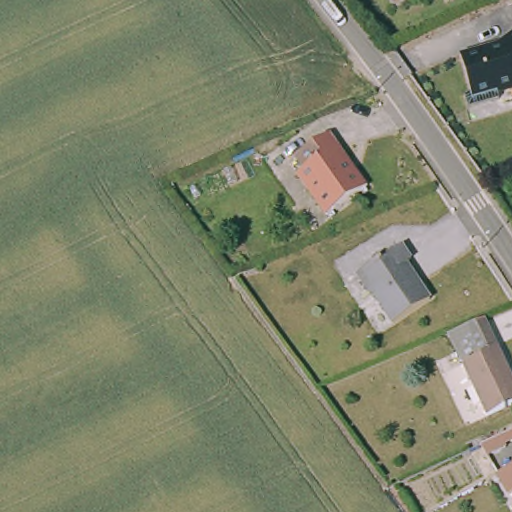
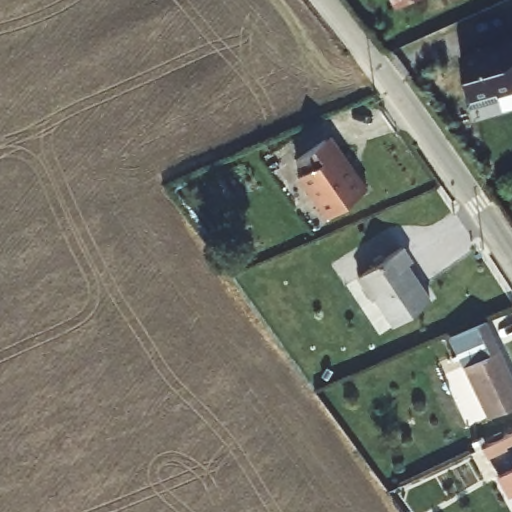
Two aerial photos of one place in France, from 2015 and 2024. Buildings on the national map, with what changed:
unchanged [(400,6),(397,0),(415,0),(400,6)]
unchanged [(461,55),(500,44),(512,36),(512,91),(475,101),(461,55)]
unchanged [(322,220),(292,179),(298,175),(290,164),(318,142),(324,138),(347,170),(363,191),(322,220)]
unchanged [(375,264),(371,258),(382,250),(387,257),(403,246),(417,263),(410,268),(433,300),(397,326),(379,299),(375,302),(358,276),(375,264)]
unchanged [(512,404),(483,418),(443,336),(480,320),(512,385),(512,404)]
unchanged [(512,495),(506,500),(494,476),(512,466),(512,495)]

